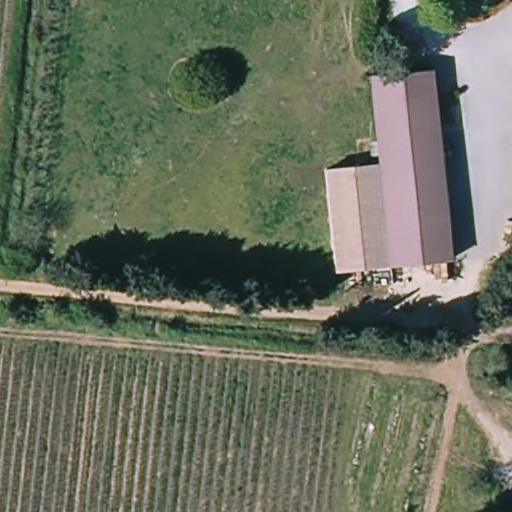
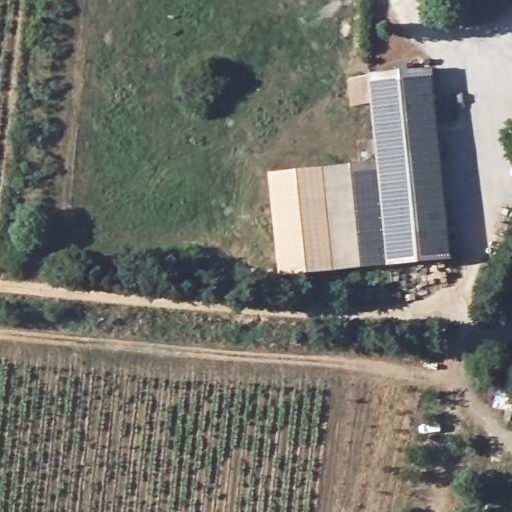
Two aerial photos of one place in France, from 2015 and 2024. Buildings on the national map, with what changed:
unchanged [(458,258),(393,266),(382,160),(373,75),(436,69),(458,258)]
unchanged [(393,266),(333,272),(323,165),(382,160),(393,266)]
new [(333,272),(280,278),(269,175),(323,169),(333,272)]

